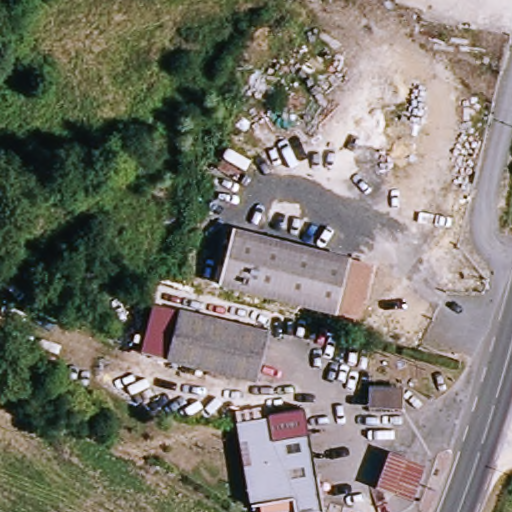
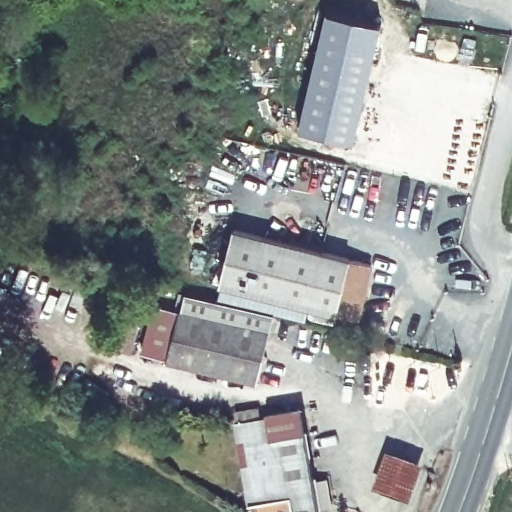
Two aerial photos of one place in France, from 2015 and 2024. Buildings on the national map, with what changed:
new [(324,10),(382,23),(354,142),(297,128),(324,10)]
unchanged [(370,267),(356,324),(218,285),(232,229),(370,267)]
unchanged [(191,310),(276,329),(264,375),(181,354),(191,310)]
unchanged [(368,385),(403,388),(402,409),(368,407),(368,385)]
unchanged [(271,417),(275,438),(312,433),(327,510),(318,512),(296,512),(294,498),(252,504),(237,422),(271,417)]
unchanged [(434,462),(422,497),(386,485),(397,447),(434,462)]

